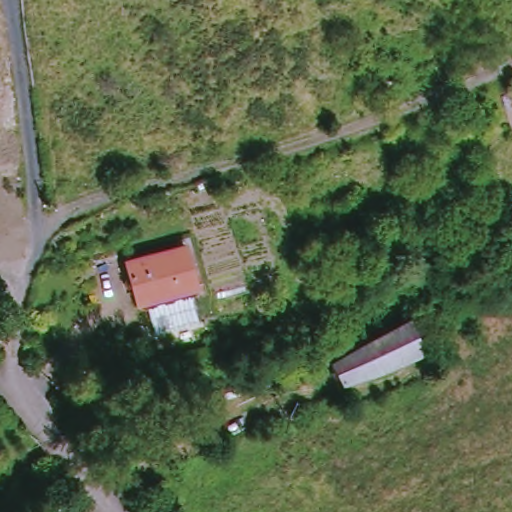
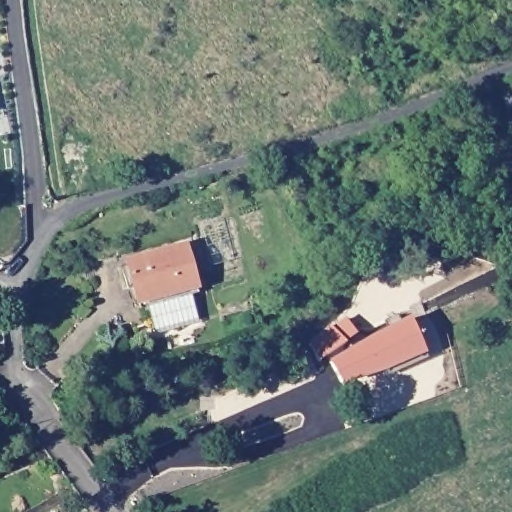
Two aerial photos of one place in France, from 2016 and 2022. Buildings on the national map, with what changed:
unchanged [(152,332),(143,301),(135,303),(125,262),(180,247),(192,288),(185,290),(194,321),(152,332)]
unchanged [(423,352),(387,368),(340,384),(330,366),(410,321),(411,323),(423,352)]
unchanged [(347,345),(318,362),(307,344),(324,333),(332,327),(347,345)]

